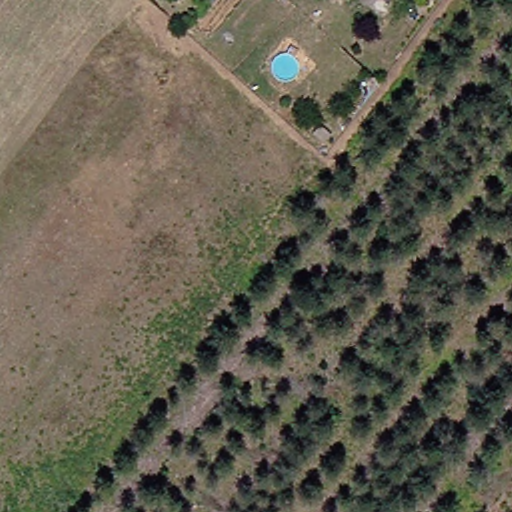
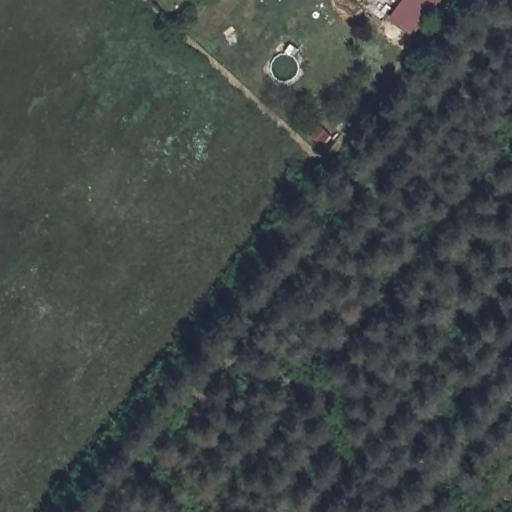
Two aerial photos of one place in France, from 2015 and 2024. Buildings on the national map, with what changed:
new [(404,0),(440,0),(412,38),(389,20),(404,0)]

